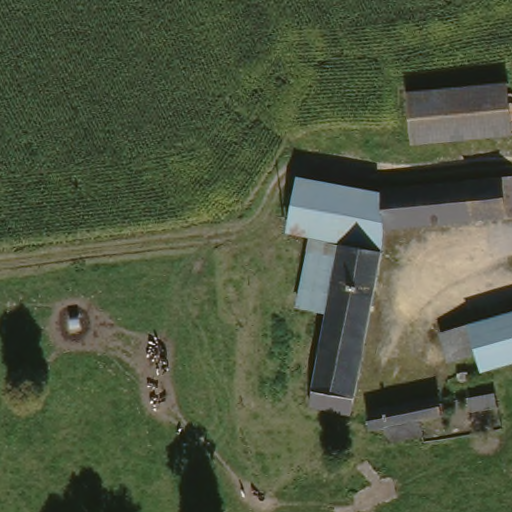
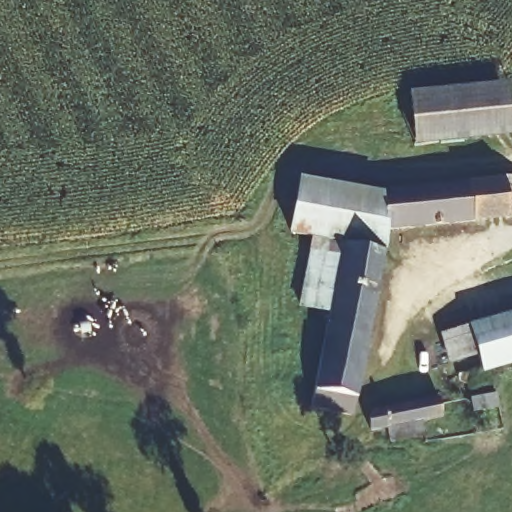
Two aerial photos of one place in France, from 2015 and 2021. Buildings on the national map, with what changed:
unchanged [(417,93),(512,81),(512,131),(423,142),(417,93)]
unchanged [(291,222),(301,166),(383,182),(389,219),(384,240),(343,231),(291,222)]
unchanged [(383,182),(383,177),(418,175),(512,167),(512,207),(389,219),(383,182)]
unchanged [(330,299),(301,294),(313,231),(342,236),(330,299)]
unchanged [(330,299),(342,236),(343,231),(384,240),(353,403),(312,396),(330,299)]
unchanged [(512,357),(484,365),(478,347),(452,354),(444,327),(512,308),(512,357)]
unchanged [(370,414),(372,407),(386,405),(441,396),(444,416),(390,426),(374,429),(370,414)]

